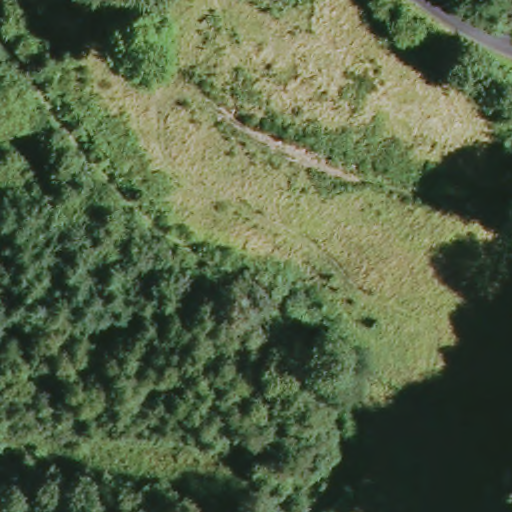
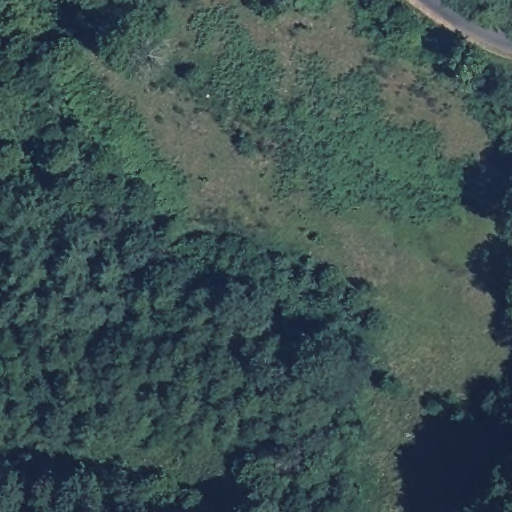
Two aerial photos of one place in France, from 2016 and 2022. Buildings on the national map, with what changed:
[]

